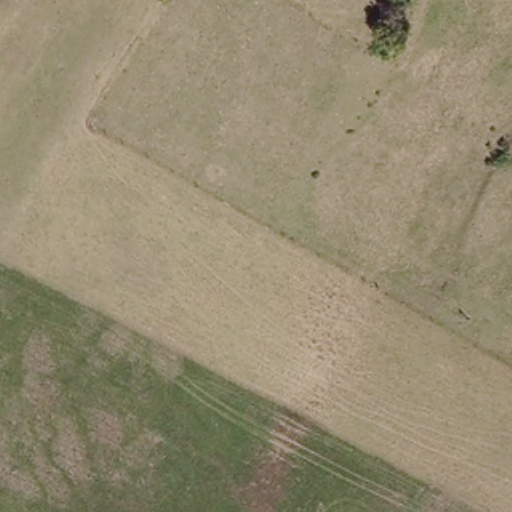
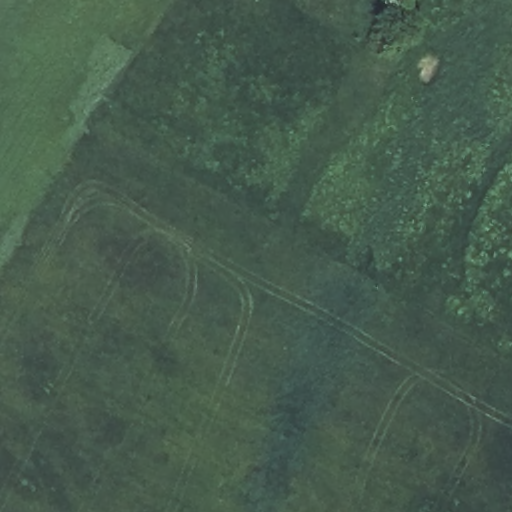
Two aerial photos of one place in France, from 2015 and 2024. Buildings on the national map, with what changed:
[]

